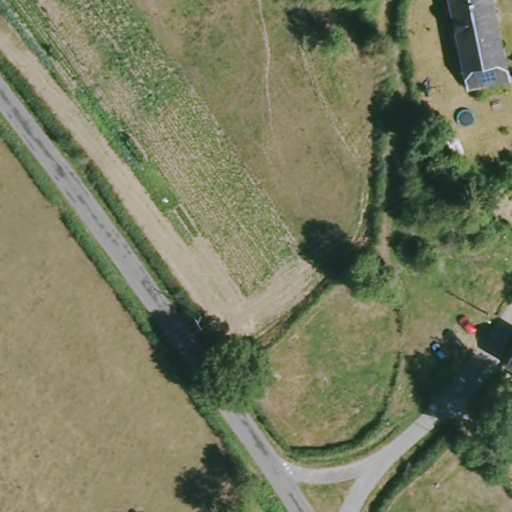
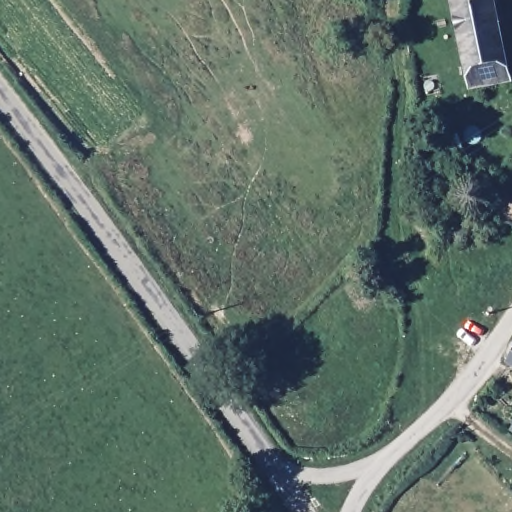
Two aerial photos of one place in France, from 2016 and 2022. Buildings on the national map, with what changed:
unchanged [(512,61),(512,76),(477,84),(457,0),(498,0),(512,61)]

